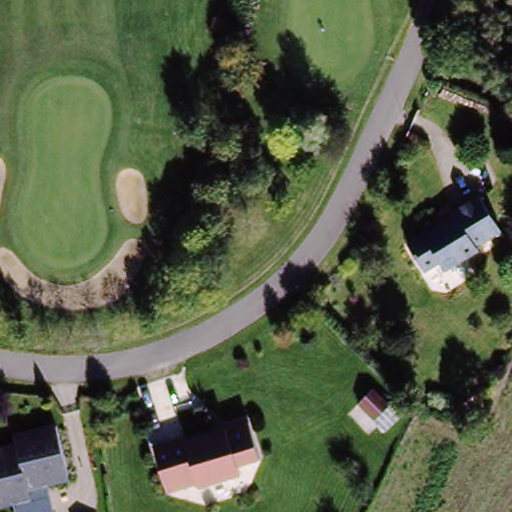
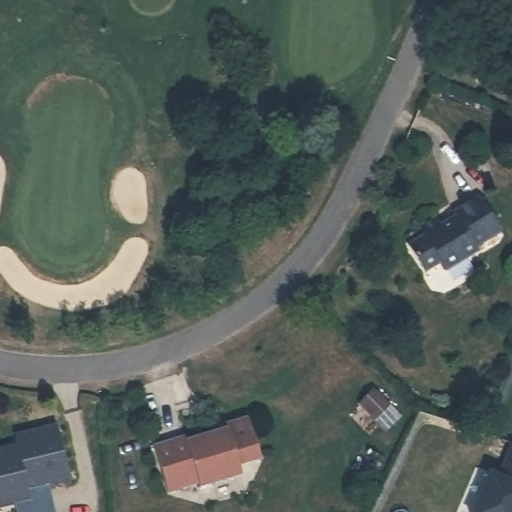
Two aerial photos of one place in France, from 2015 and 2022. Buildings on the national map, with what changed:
unchanged [(479,193),(501,230),(477,248),(474,245),(444,267),(438,258),(421,267),(406,239),(423,230),(419,222),(437,212),(443,219),(456,212),(453,208),(479,193)]
unchanged [(358,400),(370,389),(391,410),(379,421),(358,400)]
unchanged [(249,420),(258,463),(238,467),(241,482),(196,490),(195,484),(163,489),(153,438),(196,430),(197,434),(233,427),(231,423),(249,420)]
unchanged [(0,446),(0,445),(2,451),(18,447),(15,433),(57,424),(68,474),(51,478),(29,483),(30,493),(13,497),(0,500),(0,446)]
new [(507,459),(512,444),(512,512),(473,512),(490,471),(499,475),(507,459)]
unchanged [(49,512),(17,512),(13,497),(30,493),(29,483),(51,478),(58,509),(49,512)]

